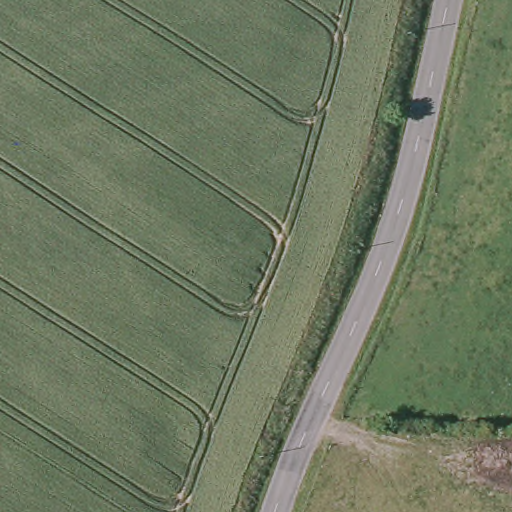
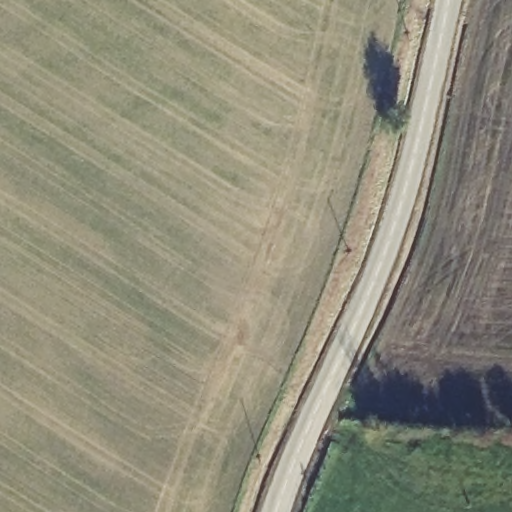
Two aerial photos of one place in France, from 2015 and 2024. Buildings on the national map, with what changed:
[]

